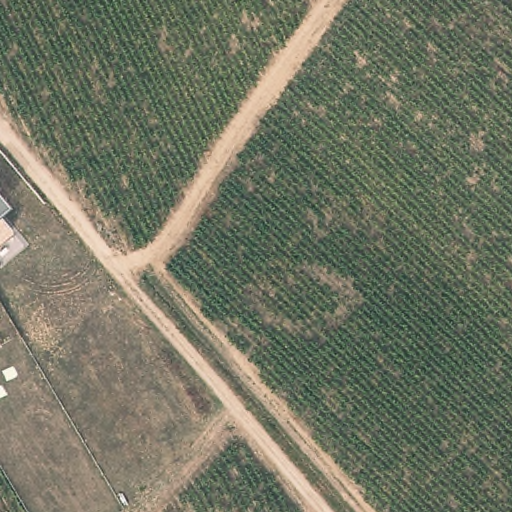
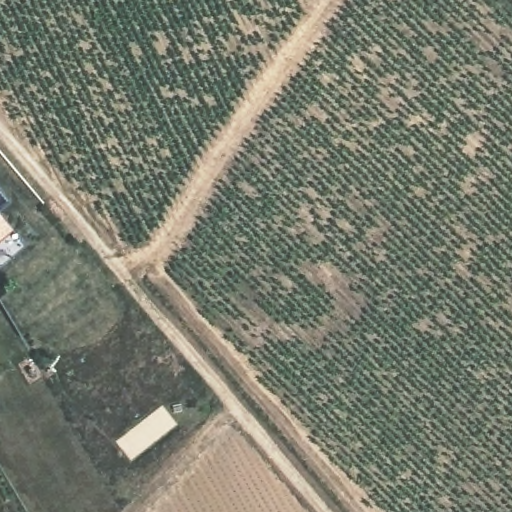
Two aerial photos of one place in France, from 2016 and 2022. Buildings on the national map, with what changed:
unchanged [(8,200),(0,208),(0,190),(8,200)]
unchanged [(13,229),(0,240),(0,214),(13,229)]

